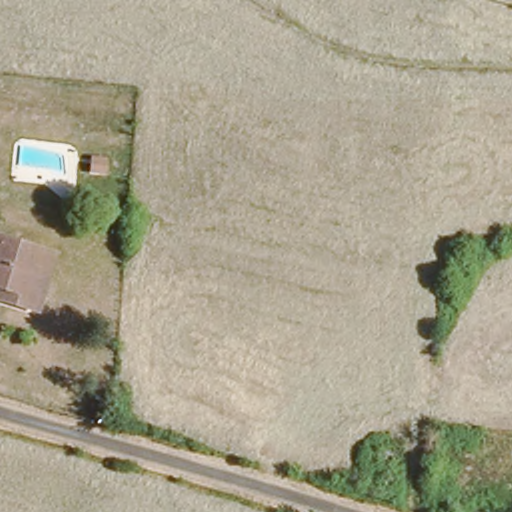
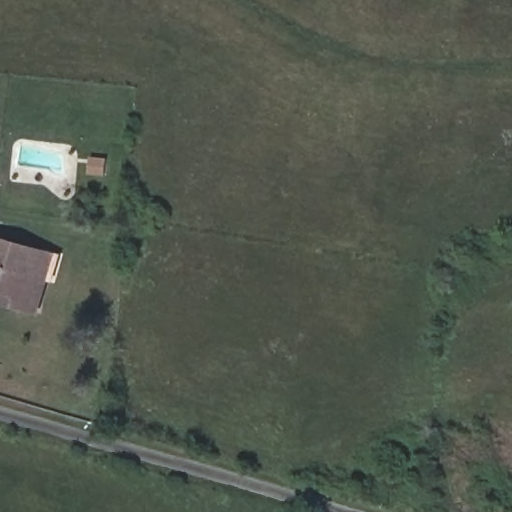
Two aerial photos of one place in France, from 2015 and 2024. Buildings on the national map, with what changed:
unchanged [(39,245),(49,248),(44,267),(35,303),(14,297),(0,294),(0,235),(39,245)]

